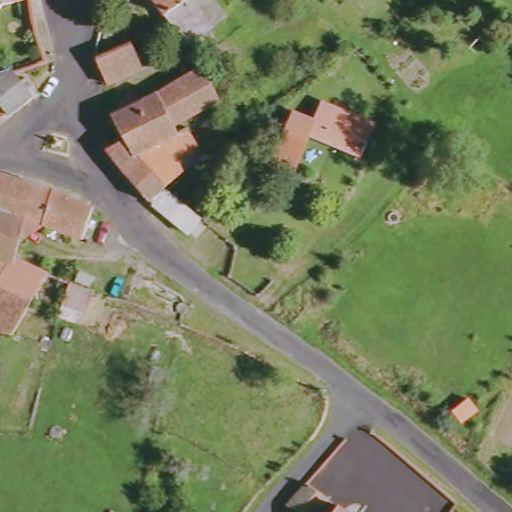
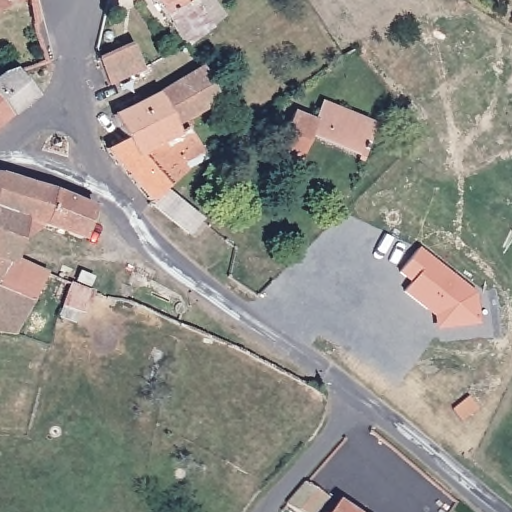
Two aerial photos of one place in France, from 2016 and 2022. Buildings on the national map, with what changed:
unchanged [(0,11),(0,0),(9,0),(3,1),(0,11)]
unchanged [(205,26),(180,44),(153,0),(188,0),(205,26)]
unchanged [(96,55),(130,42),(141,68),(105,83),(96,55)]
unchanged [(157,91),(203,64),(218,101),(173,125),(157,91)]
unchanged [(0,78),(13,71),(29,99),(5,118),(0,109),(0,78)]
unchanged [(108,148),(130,140),(113,113),(157,91),(173,125),(177,131),(188,126),(202,152),(185,167),(188,170),(164,188),(196,222),(180,237),(150,200),(108,148)]
unchanged [(362,142),(312,127),(304,151),(283,143),(293,110),(311,118),(316,98),(368,115),(362,142)]
unchanged [(0,122),(0,109),(5,118),(0,122)]
unchanged [(44,217),(27,210),(20,229),(12,253),(8,260),(0,255),(0,169),(53,184),(44,217)]
unchanged [(81,235),(44,217),(53,184),(95,205),(81,235)]
new [(435,330),(433,317),(403,293),(410,283),(398,273),(420,249),(475,293),(478,325),(435,330)]
unchanged [(12,253),(44,265),(15,330),(0,327),(0,271),(8,260),(12,253)]
unchanged [(0,271),(0,255),(8,260),(0,271)]
unchanged [(93,290),(87,312),(62,302),(68,282),(75,284),(93,290)]
unchanged [(315,512),(291,512),(286,509),(306,483),(325,500),(315,512)]
unchanged [(351,512),(333,512),(338,504),(351,512)]

